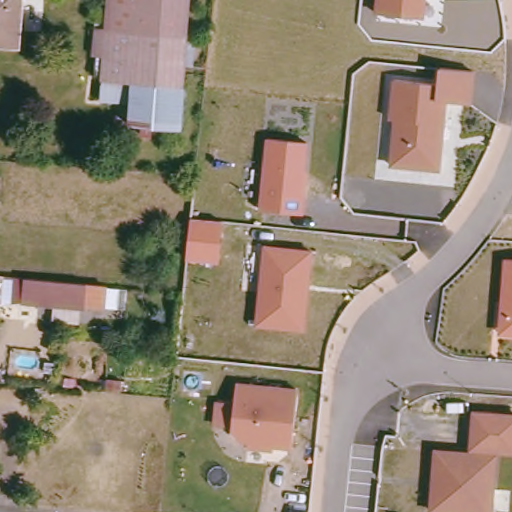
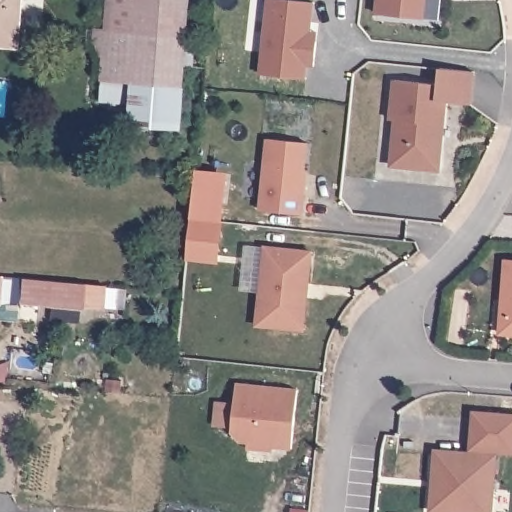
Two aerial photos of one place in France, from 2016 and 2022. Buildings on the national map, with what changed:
unchanged [(19,46),(0,44),(0,0),(22,0),(19,46)]
unchanged [(179,131),(129,126),(130,104),(100,102),(104,55),(94,55),(96,29),(106,29),(108,0),(189,0),(179,131)]
new [(314,3),(310,33),(318,33),(317,42),(315,66),(307,66),(305,79),(261,75),(268,0),(288,0),(314,3)]
unchanged [(374,13),(375,0),(427,0),(425,19),(374,13)]
unchanged [(395,124),(390,124),(394,84),(439,88),(440,71),(477,76),(475,108),(449,105),(443,176),(391,172),(395,124)]
unchanged [(269,141),(310,147),(304,218),(261,213),(269,141)]
new [(222,222),(190,219),(194,172),(227,175),(222,222)]
unchanged [(190,219),(222,222),(219,264),(185,261),(190,219)]
unchanged [(265,249),(314,255),(307,334),(257,330),(265,249)]
unchanged [(500,338),(505,262),(512,263),(512,339),(500,338)]
unchanged [(60,304),(34,301),(37,278),(62,280),(100,284),(97,307),(60,304)]
unchanged [(299,387),(292,446),(268,443),(267,447),(247,445),(248,439),(240,438),(232,427),(237,381),(299,387)]
unchanged [(472,411),(512,414),(512,458),(497,458),(469,456),(472,411)]
unchanged [(433,512),(437,454),(497,458),(493,512),(433,512)]

